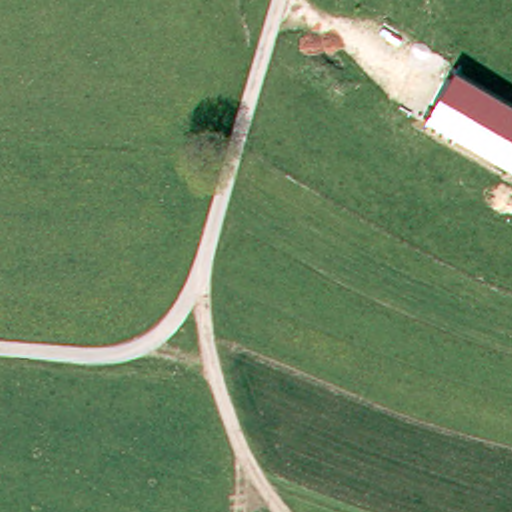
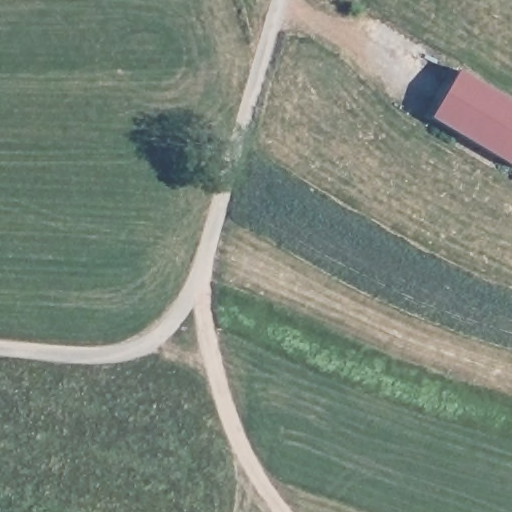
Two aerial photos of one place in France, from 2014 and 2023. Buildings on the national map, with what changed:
unchanged [(512,100),(512,167),(429,119),(459,70),(512,100)]

